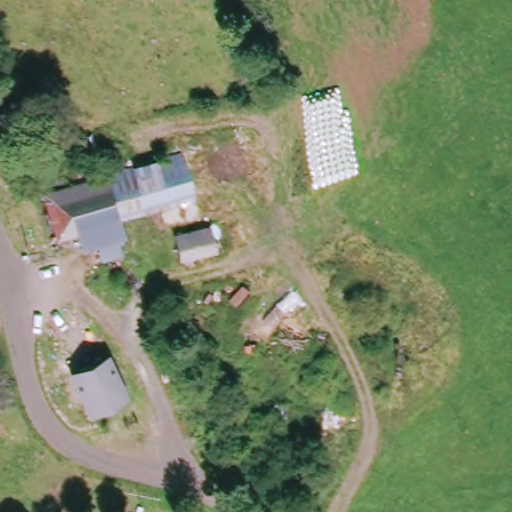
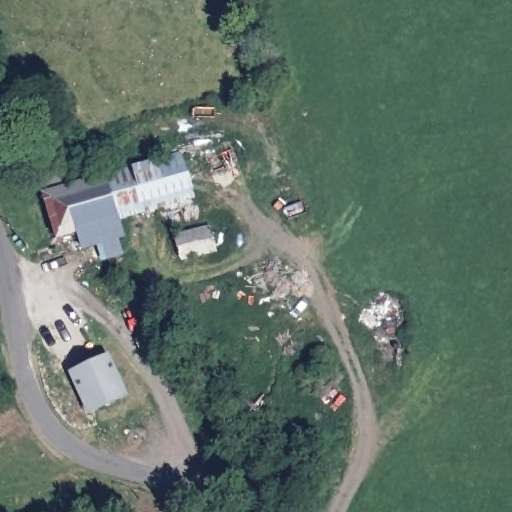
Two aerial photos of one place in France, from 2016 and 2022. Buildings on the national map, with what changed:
unchanged [(189,214),(170,166),(195,160),(209,208),(189,214)]
unchanged [(110,260),(104,240),(96,243),(80,249),(63,190),(56,168),(78,161),(84,184),(120,172),(124,179),(133,177),(170,166),(189,214),(142,228),(137,230),(138,251),(110,260)]
unchanged [(189,281),(181,252),(218,241),(225,270),(189,281)]
unchanged [(94,316),(114,359),(80,378),(76,371),(81,368),(70,344),(58,348),(52,333),(94,316)]
unchanged [(114,359),(118,366),(134,396),(100,415),(85,387),(80,378),(114,359)]

